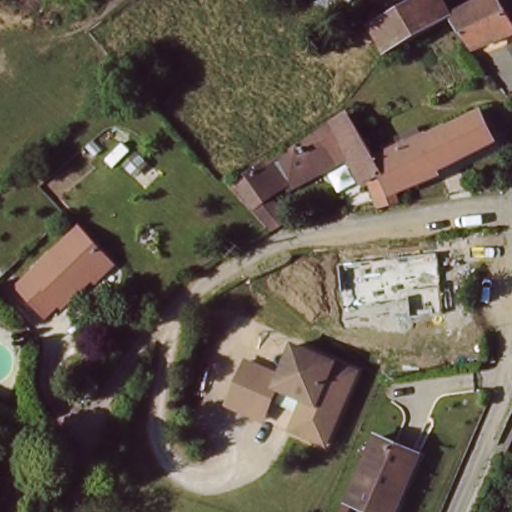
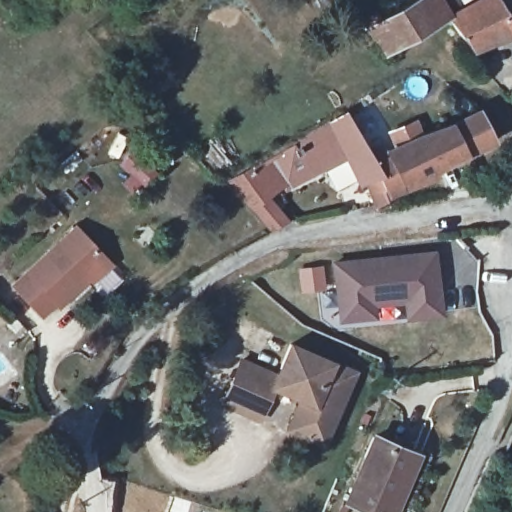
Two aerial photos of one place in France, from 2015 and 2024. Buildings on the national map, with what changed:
unchanged [(424,0),(438,19),(435,21),(410,38),(382,58),(380,56),(363,31),(406,0),(424,0)]
unchanged [(505,24),(467,51),(455,36),(442,16),(447,13),(465,0),(500,0),(508,13),(500,18),(505,24)]
unchanged [(484,115),(498,144),(457,164),(396,194),(400,207),(378,212),(370,189),(377,187),(384,184),(385,183),(379,166),(484,115)]
unchanged [(275,233),(252,198),(248,199),(231,175),(353,123),(379,166),(385,183),(384,184),(377,187),(370,189),(363,192),(351,164),(343,167),(341,162),(313,173),(310,168),(277,182),(280,186),(271,190),(292,229),(275,233)]
unchanged [(86,289),(81,284),(78,287),(50,312),(20,279),(69,234),(100,268),(105,272),(86,289)]
new [(334,260),(437,249),(446,314),(406,320),(405,304),(377,306),(378,318),(340,323),(334,260)]
unchanged [(251,406),(229,396),(249,354),(283,368),(296,338),(355,363),(345,391),(349,392),(331,437),(297,423),(309,392),(282,381),(277,391),(266,413),(251,406)]
unchanged [(374,436),(413,452),(394,497),(398,499),(393,512),(376,512),(347,499),(374,436)]

